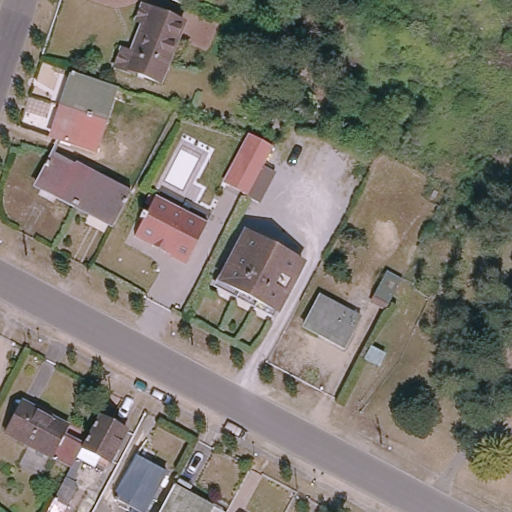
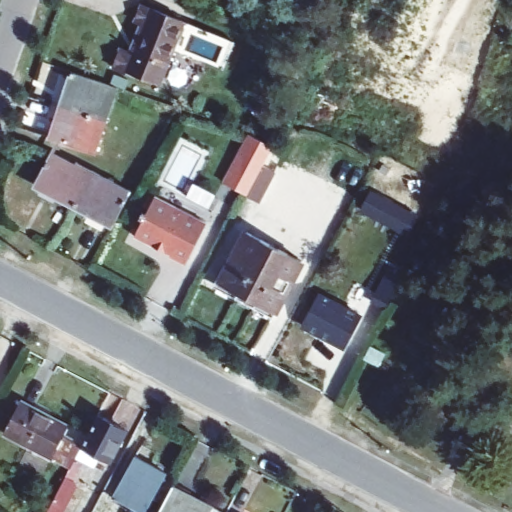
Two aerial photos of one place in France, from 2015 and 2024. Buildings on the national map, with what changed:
unchanged [(142,1),(184,18),(160,78),(134,68),(133,70),(114,63),(122,43),(134,48),(144,21),(135,18),(142,1)]
unchanged [(102,119),(56,105),(67,73),(112,88),(102,119)]
unchanged [(102,119),(90,152),(45,137),(56,105),(102,119)]
unchanged [(222,183),(247,134),(272,148),(247,195),(222,183)]
unchanged [(72,202),(34,182),(50,150),(72,161),(74,159),(90,168),(72,202)]
unchanged [(269,166),(280,172),(264,203),(252,198),(269,166)]
unchanged [(111,222),(72,202),(90,168),(129,188),(111,222)]
unchanged [(150,212),(154,214),(162,198),(212,224),(192,263),(177,255),(178,254),(142,235),(151,219),(147,217),(150,212)]
unchanged [(270,310),(216,282),(242,233),(297,262),(270,310)]
unchanged [(378,300),(393,272),(407,279),(392,307),(378,300)]
unchanged [(340,347),(300,326),(316,296),(356,317),(340,347)]
unchanged [(390,354),(385,366),(370,359),(377,347),(390,354)]
unchanged [(72,464),(75,467),(70,476),(72,479),(62,499),(52,494),(70,459),(3,424),(18,396),(65,422),(62,429),(80,439),(80,441),(74,451),(79,453),(72,464)]
unchanged [(125,424),(108,456),(80,441),(80,439),(97,409),(125,424)]
unchanged [(139,512),(126,512),(130,504),(120,499),(122,494),(114,490),(135,450),(167,467),(145,507),(142,506),(139,512)]
unchanged [(174,487),(185,493),(184,495),(212,511),(212,512),(161,512),(174,487)]

